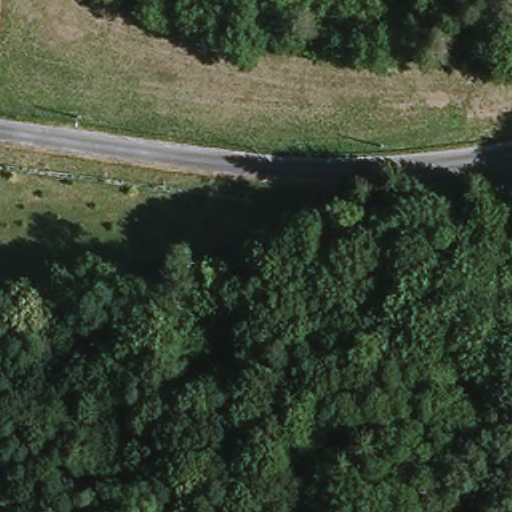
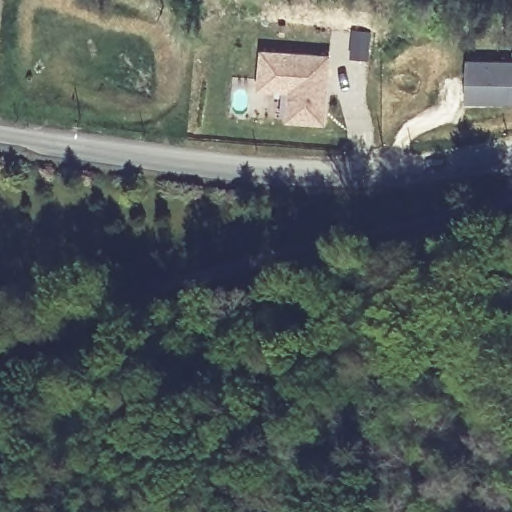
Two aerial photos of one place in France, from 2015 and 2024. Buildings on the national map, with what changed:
new [(262,52),(329,59),(323,123),(287,120),(290,91),(259,89),(262,52)]
new [(512,64),(512,104),(465,102),(467,62),(512,64)]

